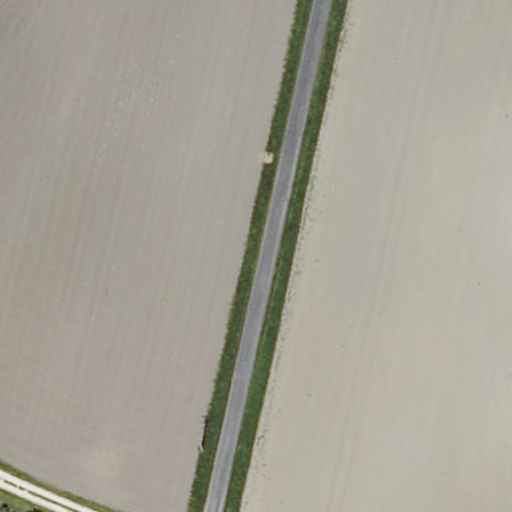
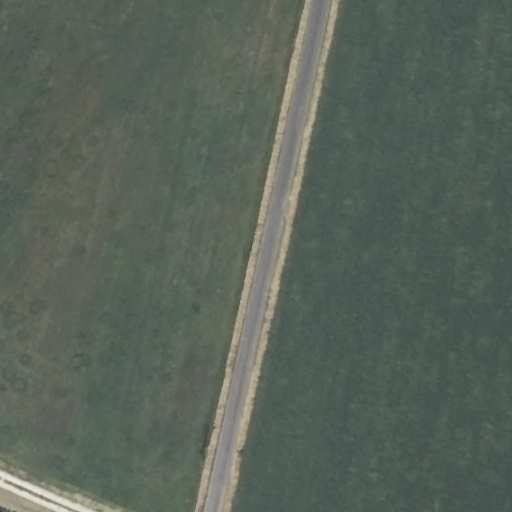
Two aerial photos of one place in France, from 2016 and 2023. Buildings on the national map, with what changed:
[]

